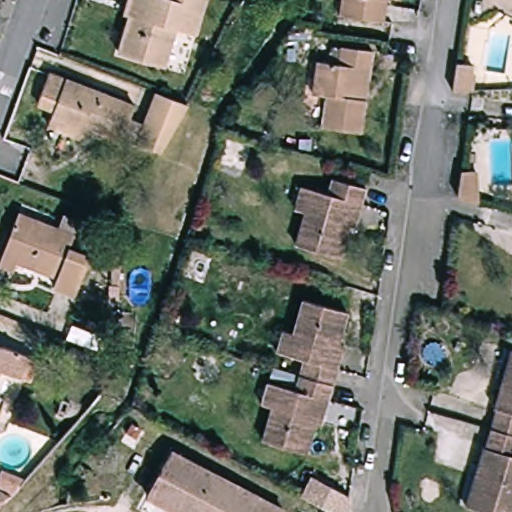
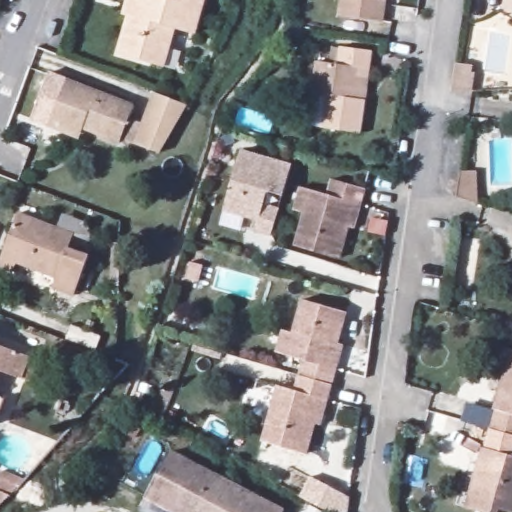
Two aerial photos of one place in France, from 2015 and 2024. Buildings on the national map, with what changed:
unchanged [(180,28),(169,59),(125,44),(135,14),(127,11),(130,0),(209,0),(198,34),(180,28)]
unchanged [(341,0),(388,0),(385,22),(339,15),(341,0)]
unchanged [(321,126),(325,95),(311,93),(315,60),(338,64),(341,47),(372,51),(369,71),(365,99),(360,132),(321,126)]
unchanged [(464,57),(464,67),(467,67),(468,87),(447,88),(452,58),(464,57)]
unchanged [(129,106),(115,142),(50,117),(65,81),(129,106)]
unchanged [(160,151),(133,140),(152,92),(186,105),(160,151)]
new [(235,147),(285,160),(277,192),(262,187),(258,201),(274,205),(267,231),(251,227),(254,217),(219,207),(235,147)]
unchanged [(455,169),(475,175),(471,201),(451,195),(455,169)]
unchanged [(298,247),(308,215),(296,211),(303,189),(330,196),(334,182),(368,192),(364,207),(357,230),(350,227),(341,260),(298,247)]
unchanged [(78,232),(72,248),(94,257),(79,295),(57,287),(62,272),(22,257),(16,271),(0,265),(0,263),(22,209),(78,232)]
unchanged [(335,366),(329,382),(298,372),(303,358),(274,350),(281,327),(291,331),(301,297),(343,310),(334,339),(341,342),(335,366)]
unchanged [(23,352),(14,377),(0,372),(0,344),(23,352)]
unchanged [(500,410),(495,408),(501,391),(512,352),(512,435),(494,429),(500,410)]
unchanged [(325,398),(317,423),(309,422),(301,453),(258,440),(269,407),(258,403),(265,381),(293,390),(298,372),(329,382),(325,398)]
unchanged [(483,448),(488,450),(494,429),(512,435),(512,512),(511,512),(500,508),(499,512),(477,512),(474,511),(466,508),(479,466),(483,448)]
unchanged [(174,452),(282,511),(281,512),(178,512),(149,497),(174,452)]
unchanged [(327,512),(294,494),(305,473),(338,492),(334,512),(328,512),(327,512)]
unchanged [(11,497),(0,506),(0,491),(11,497)]

